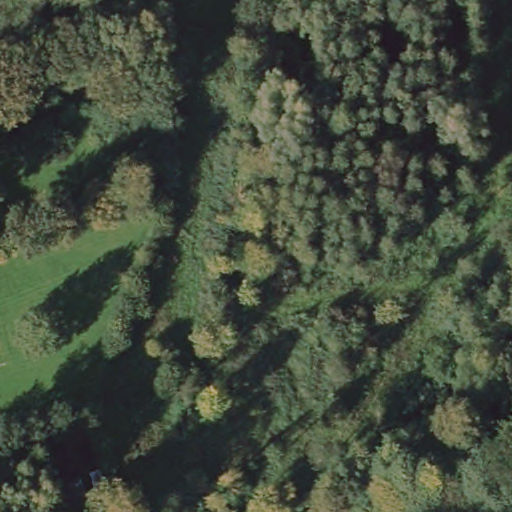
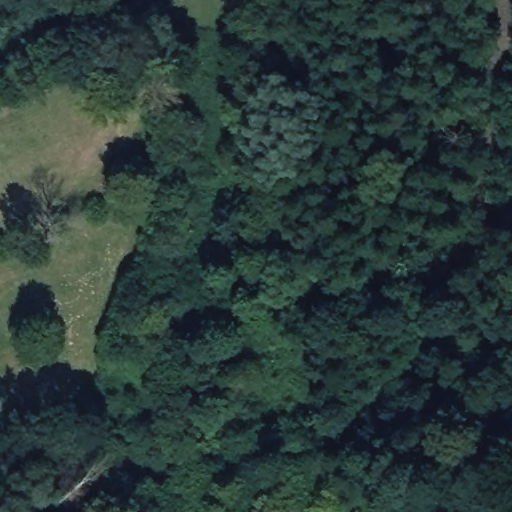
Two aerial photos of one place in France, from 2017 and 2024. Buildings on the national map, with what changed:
unchanged [(70,481),(95,478),(102,508),(82,512),(29,512),(23,498),(45,493),(26,438),(60,428),(70,481)]

